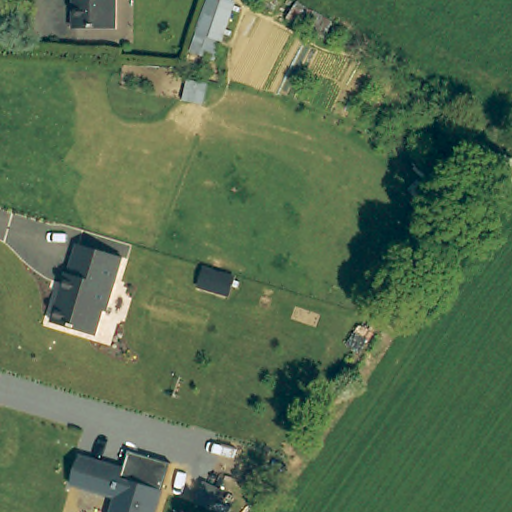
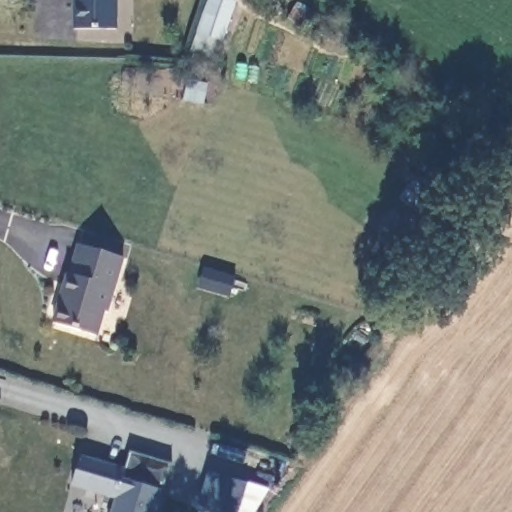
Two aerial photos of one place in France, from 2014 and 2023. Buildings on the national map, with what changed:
unchanged [(71,0),(114,0),(113,30),(70,29),(71,0)]
unchanged [(231,0),(236,2),(217,60),(192,51),(209,0),(231,0)]
unchanged [(111,317),(108,316),(100,340),(56,327),(71,277),(74,278),(82,249),(128,262),(111,317)]
unchanged [(120,497),(75,485),(84,456),(129,469),(134,452),(177,464),(162,512),(115,512),(120,497)]

